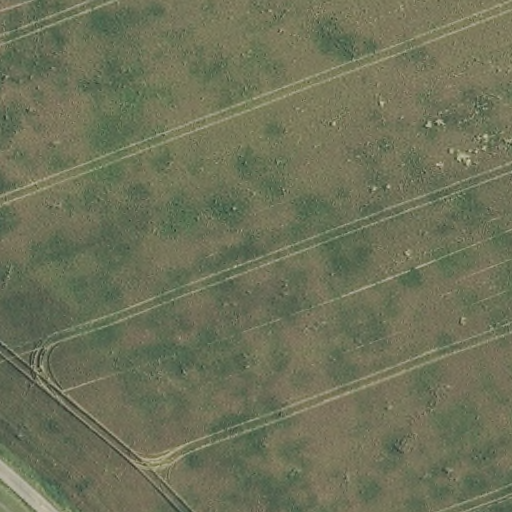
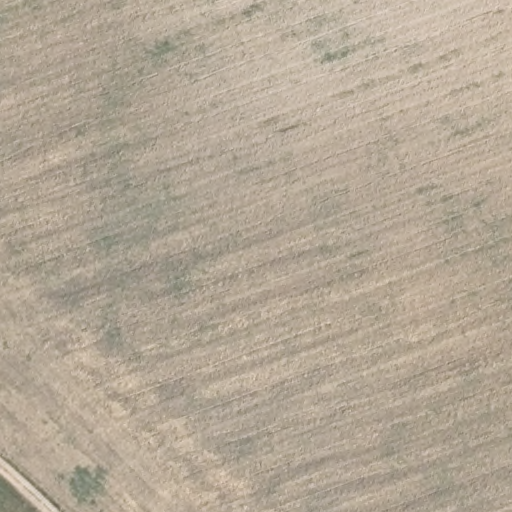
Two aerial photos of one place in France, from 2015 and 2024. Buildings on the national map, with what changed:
[]

